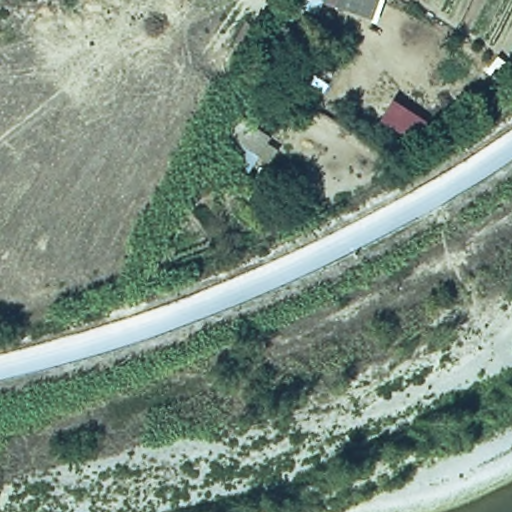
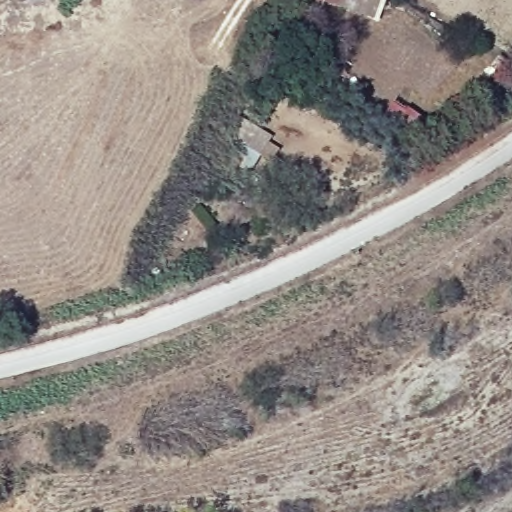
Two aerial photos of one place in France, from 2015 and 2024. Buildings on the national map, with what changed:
unchanged [(283,4),(284,0),(326,0),(317,20),(283,4)]
unchanged [(334,19),(340,0),(379,0),(368,27),(334,19)]
unchanged [(316,41),(301,68),(268,51),(282,22),(316,41)]
unchanged [(272,136),(259,159),(230,146),(246,120),(272,136)]

